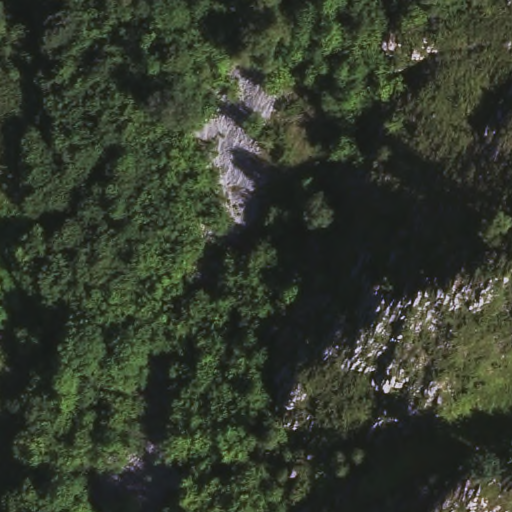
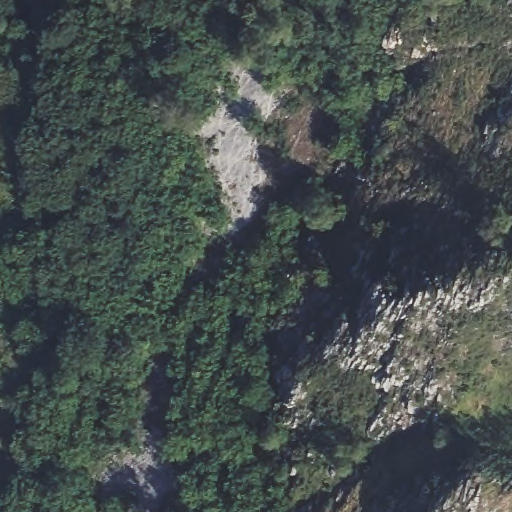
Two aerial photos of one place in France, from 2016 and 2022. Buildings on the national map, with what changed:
[]

